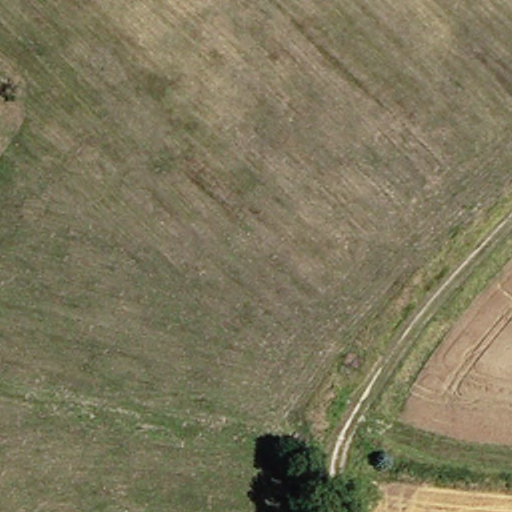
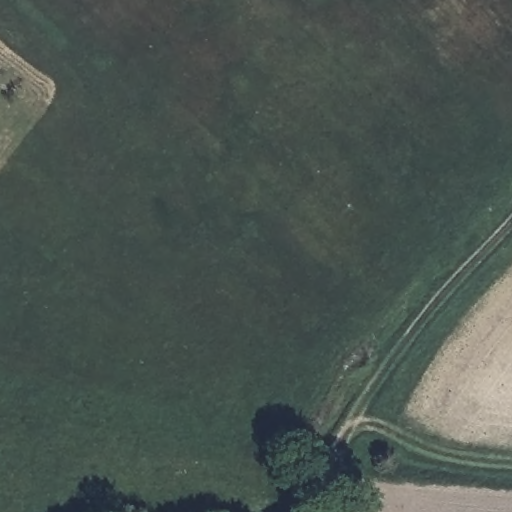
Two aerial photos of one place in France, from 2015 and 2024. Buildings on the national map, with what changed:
[]

